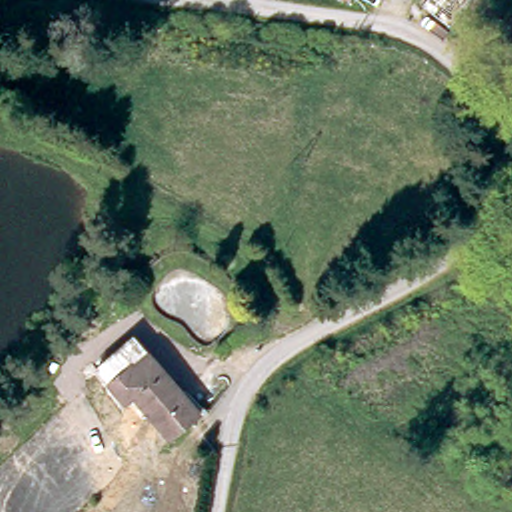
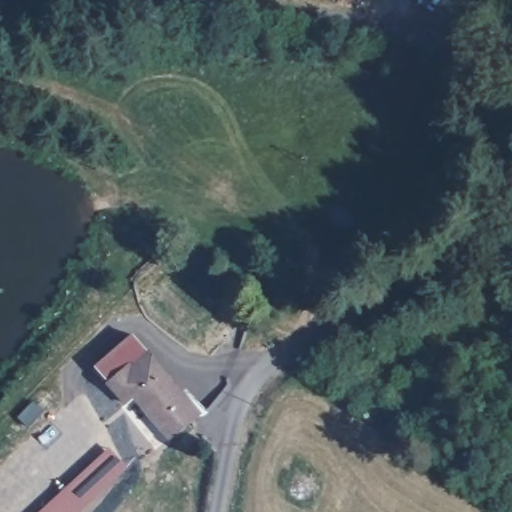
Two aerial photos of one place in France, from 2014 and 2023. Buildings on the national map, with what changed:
unchanged [(201,413),(176,436),(142,396),(132,404),(108,375),(101,366),(132,332),(141,342),(201,413)]
new [(127,467),(79,512),(39,512),(109,447),(127,467)]

